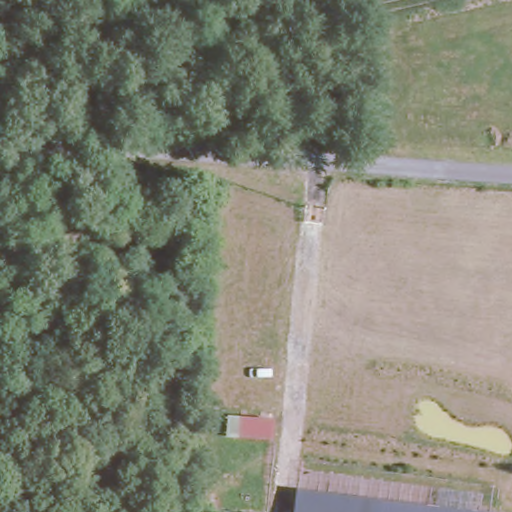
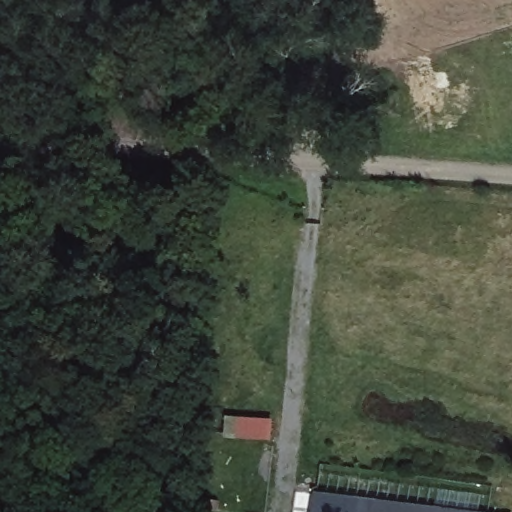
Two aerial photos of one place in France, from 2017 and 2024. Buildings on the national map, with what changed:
unchanged [(294,512),(297,488),(476,512),(294,512)]

